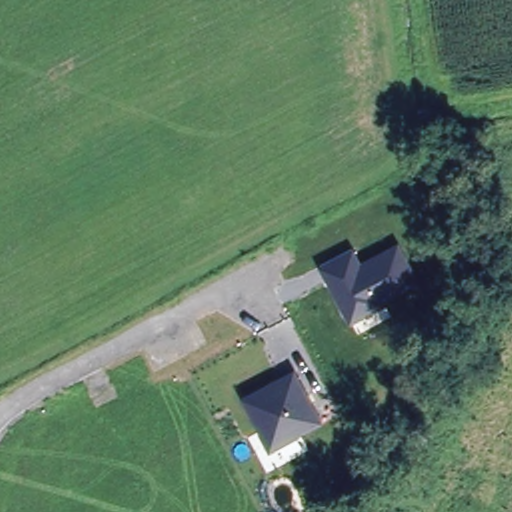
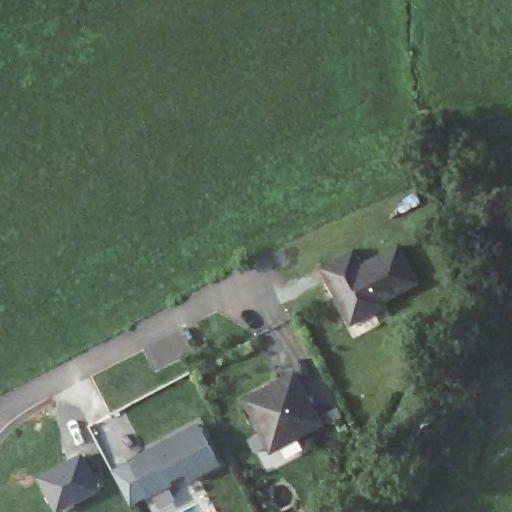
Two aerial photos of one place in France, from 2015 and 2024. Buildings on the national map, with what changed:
unchanged [(353,244),(362,261),(400,242),(418,278),(383,296),(385,301),(351,318),(322,260),(353,244)]
unchanged [(243,397),(292,370),(319,419),(270,446),(243,397)]
new [(157,447),(159,451),(166,447),(164,443),(198,425),(220,465),(190,481),(186,473),(167,483),(169,486),(149,497),(148,496),(130,463),(129,462),(157,447)]
new [(82,452),(102,489),(61,512),(54,512),(35,476),(82,452)]

